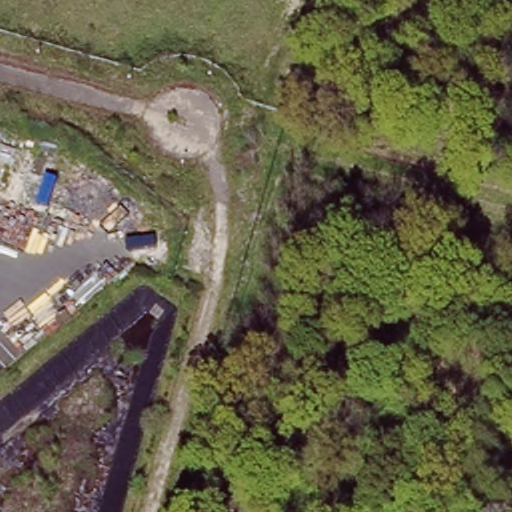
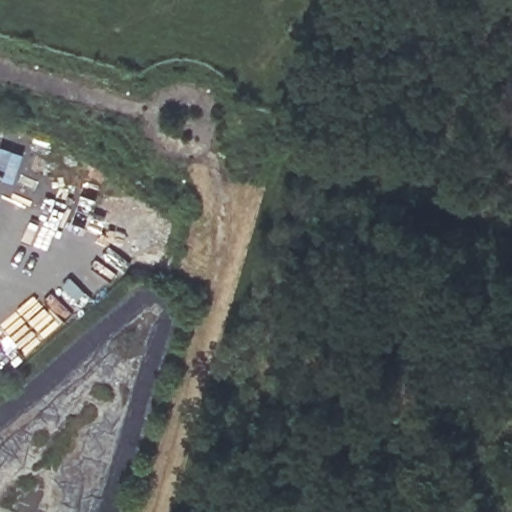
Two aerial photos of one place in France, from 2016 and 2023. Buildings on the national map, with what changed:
[]

